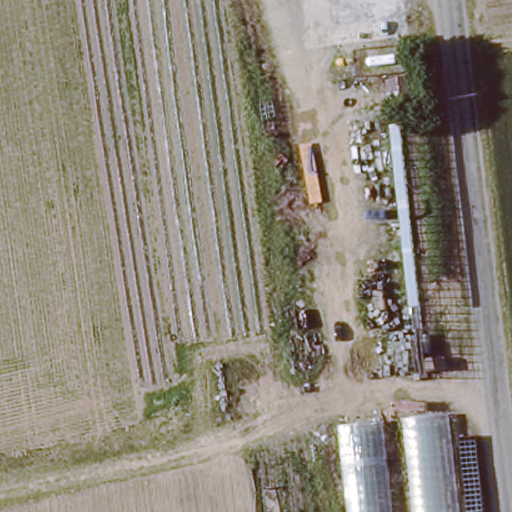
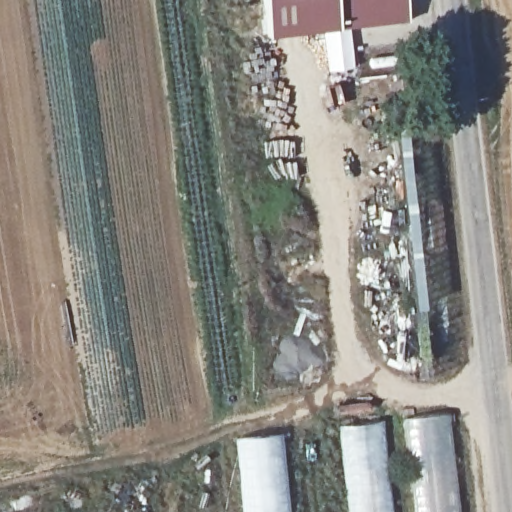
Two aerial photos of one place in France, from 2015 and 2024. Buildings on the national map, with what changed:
new [(405,0),(408,21),(338,29),(270,36),(264,0),(405,0)]
demolished [(328,0),(404,0),(409,37),(334,47),(328,0)]
unchanged [(387,84),(413,77),(417,102),(393,107),(387,84)]
unchanged [(456,512),(403,512),(394,417),(445,411),(456,512)]
unchanged [(335,423),(379,420),(389,512),(343,512),(335,423)]
new [(283,432),(291,512),(242,512),(234,437),(283,432)]

